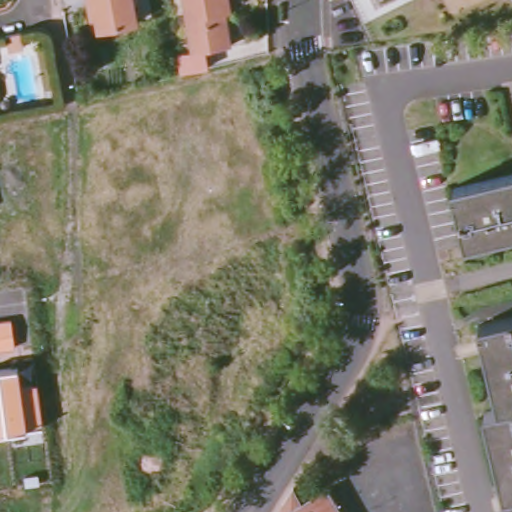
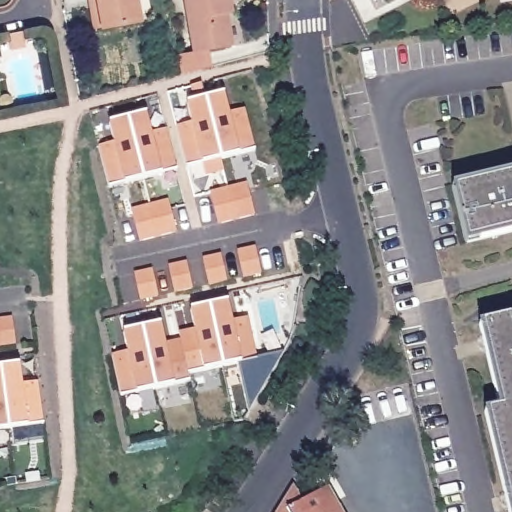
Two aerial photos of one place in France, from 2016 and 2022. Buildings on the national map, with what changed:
unchanged [(133,0),(138,20),(98,28),(91,29),(86,0),(133,0)]
unchanged [(222,15),(223,20),(226,19),(231,45),(192,52),(183,0),(230,0),(233,13),(222,15)]
demolished [(501,0),(512,0),(512,1),(505,5),(501,0)]
unchanged [(18,32),(21,31),(23,46),(8,49),(6,34),(18,32)]
new [(178,127),(191,123),(186,103),(224,93),(228,113),(245,109),(256,148),(187,166),(178,127)]
new [(98,148),(113,143),(108,123),(147,114),(152,133),(166,129),(176,170),(161,174),(124,183),(108,187),(98,148)]
unchanged [(512,173),(512,233),(466,244),(452,187),(512,173)]
new [(246,184),(254,217),(217,226),(210,193),(246,184)]
new [(169,200),(176,233),(139,242),(131,209),(169,200)]
new [(111,356),(128,352),(123,332),(161,324),(165,344),(181,340),(179,333),(194,330),(190,309),(228,301),(233,322),(248,318),(257,359),(188,374),(189,381),(120,396),(111,356)]
unchanged [(499,409),(479,325),(512,318),(512,512),(508,512),(484,412),(499,409)]
unchanged [(13,321),(16,349),(0,351),(0,323),(13,321)]
unchanged [(21,364),(24,385),(38,384),(43,428),(0,432),(0,367),(21,364)]
unchanged [(294,489),(304,504),(329,490),(341,512),(280,512),(294,489)]

